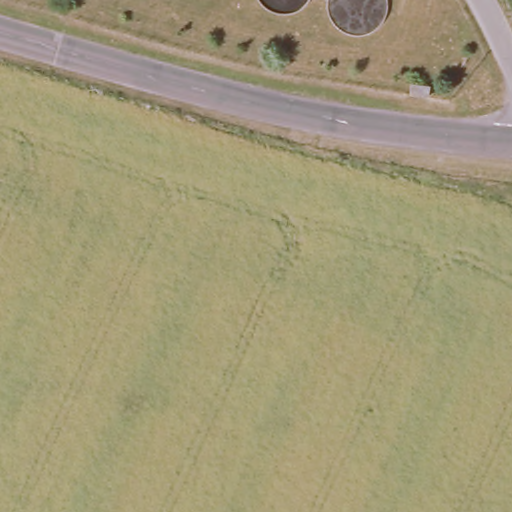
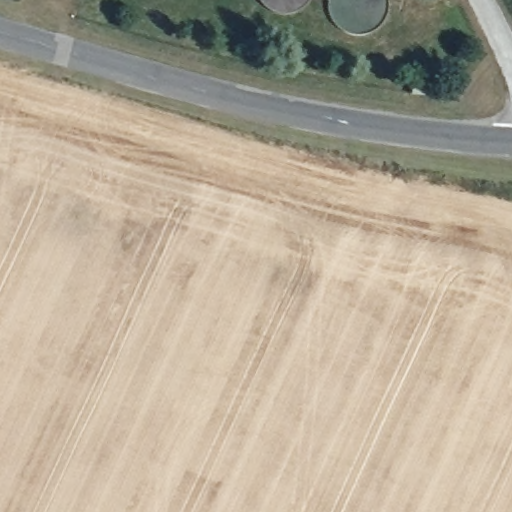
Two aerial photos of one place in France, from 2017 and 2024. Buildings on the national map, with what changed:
unchanged [(410,95),(411,85),(430,88),(428,98),(410,95)]

